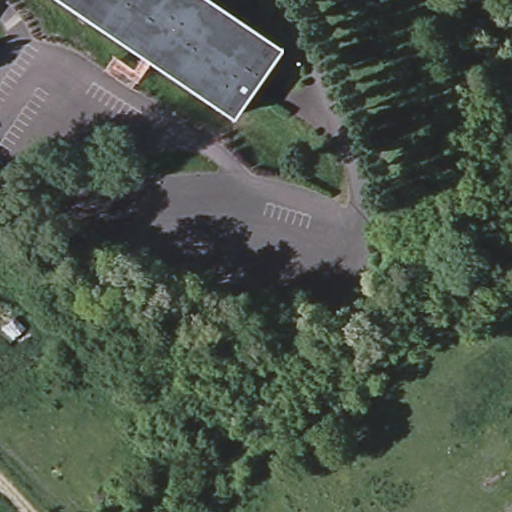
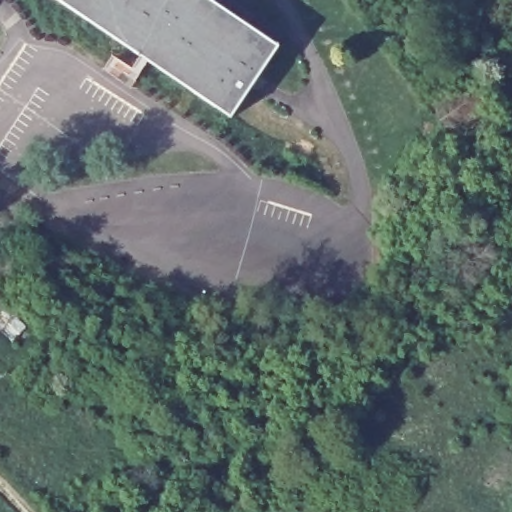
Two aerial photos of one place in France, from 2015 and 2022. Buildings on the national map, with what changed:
unchanged [(237,118),(62,0),(213,0),(284,48),(237,118)]
unchanged [(30,329),(12,343),(0,333),(0,305),(3,301),(30,329)]

